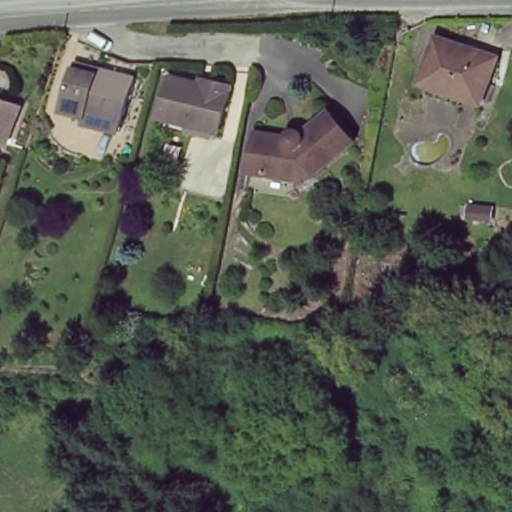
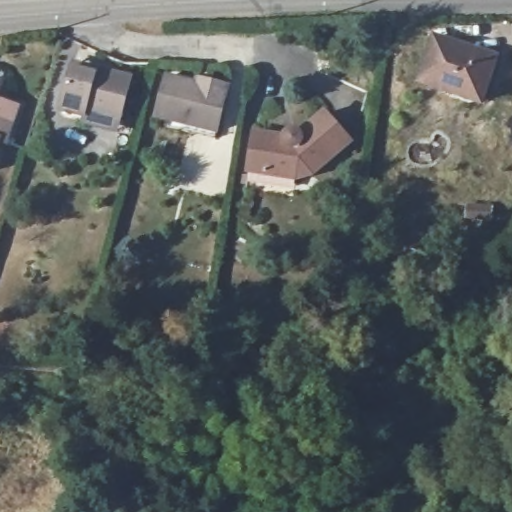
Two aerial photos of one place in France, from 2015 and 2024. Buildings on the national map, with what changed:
unchanged [(435,38),(464,47),(464,50),(494,60),(486,85),(491,88),(486,105),(451,94),(452,90),(421,80),(435,38)]
unchanged [(84,120),(84,116),(62,110),(73,69),(75,62),(97,68),(132,76),(120,121),(105,116),(103,125),(84,120)]
unchanged [(181,129),(183,123),(158,116),(168,76),(196,84),(197,79),(207,81),(228,86),(218,131),(216,138),(181,129)]
unchanged [(7,143),(0,140),(0,101),(18,107),(7,143)]
unchanged [(295,183),(251,177),(257,138),(286,142),(287,140),(288,139),(290,137),(292,135),(295,135),(297,135),(299,136),(300,138),(326,116),(352,144),(315,178),(295,183)]
unchanged [(492,206),(490,220),(484,220),(470,219),(467,219),(468,204),(486,206),(492,206)]
unchanged [(474,279),(471,291),(448,285),(451,274),(474,279)]
unchanged [(435,378),(456,383),(453,397),(432,391),(435,378)]

